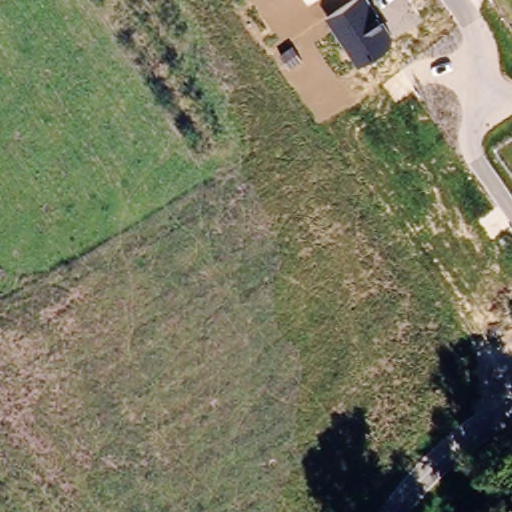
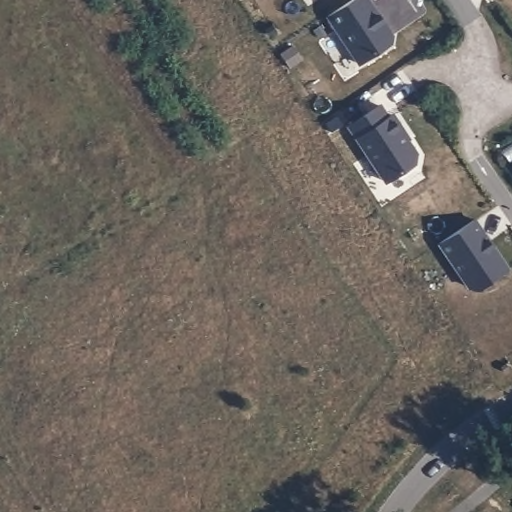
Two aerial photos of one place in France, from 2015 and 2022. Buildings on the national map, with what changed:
unchanged [(369,0),(395,35),(392,46),(360,67),(326,18),(353,0),(369,0)]
new [(377,109),(385,121),(390,118),(402,136),(401,137),(417,161),(415,167),(385,187),(347,130),(377,109)]
new [(473,224),(507,273),(476,294),(467,293),(437,248),(473,224)]

